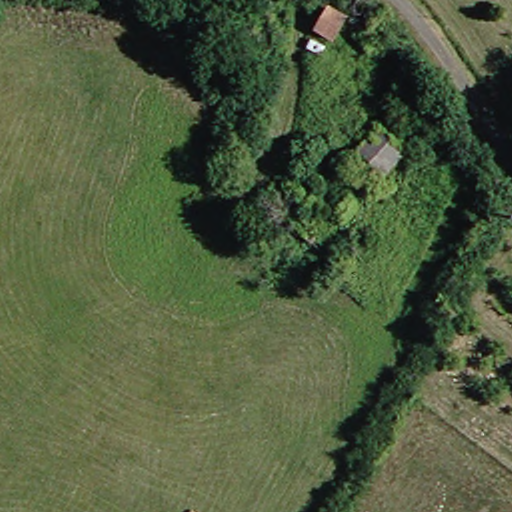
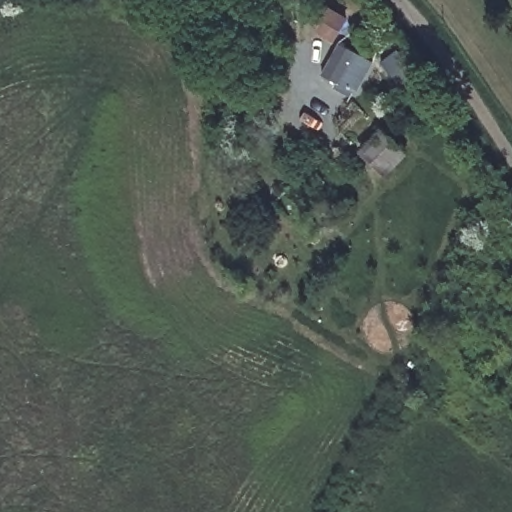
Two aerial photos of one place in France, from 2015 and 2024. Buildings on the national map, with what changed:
new [(359,47),(347,32),(363,19),(376,32),(359,47)]
new [(322,75),(339,43),(373,62),(355,94),(351,92),(349,95),(334,87),(337,84),(322,75)]

